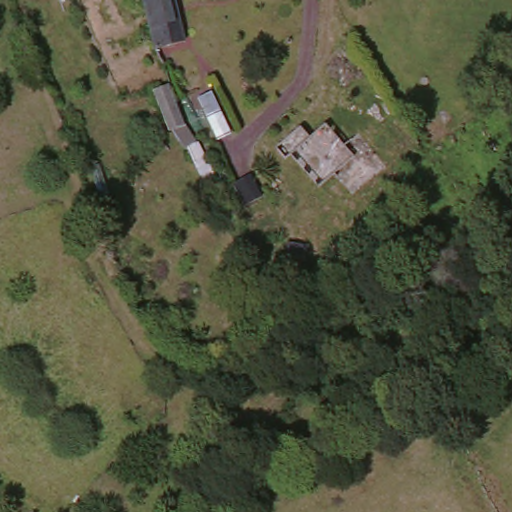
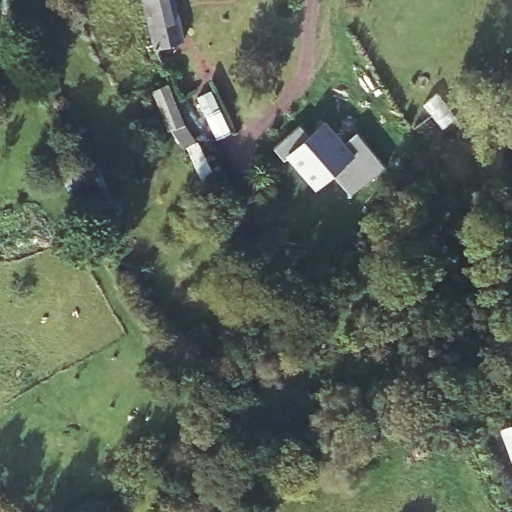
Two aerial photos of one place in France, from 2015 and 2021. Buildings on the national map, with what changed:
unchanged [(171,0),(191,45),(192,47),(157,64),(137,22),(131,0),(171,0)]
unchanged [(181,134),(169,143),(149,94),(167,84),(181,134)]
unchanged [(232,136),(213,147),(192,105),(212,93),(232,136)]
new [(337,174),(319,191),(289,156),(286,159),(274,146),(299,123),(310,132),(329,117),(351,141),(359,132),(387,167),(353,193),(337,174)]
unchanged [(213,185),(198,193),(179,152),(198,148),(213,185)]

